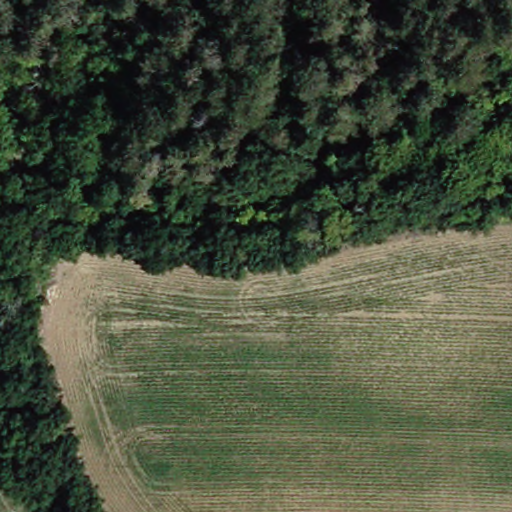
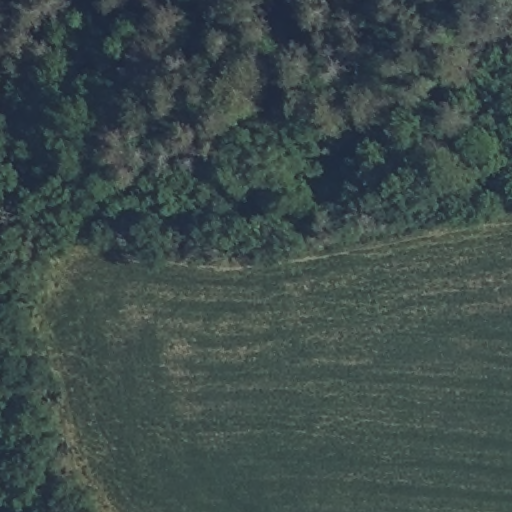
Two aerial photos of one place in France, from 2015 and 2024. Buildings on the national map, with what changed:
unchanged [(27,262),(47,260),(50,282),(27,283),(27,262)]

